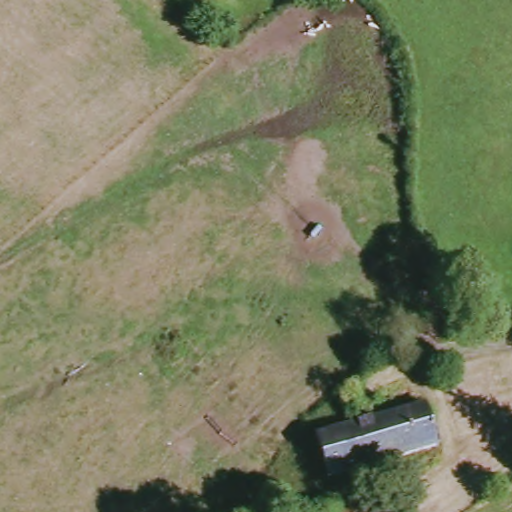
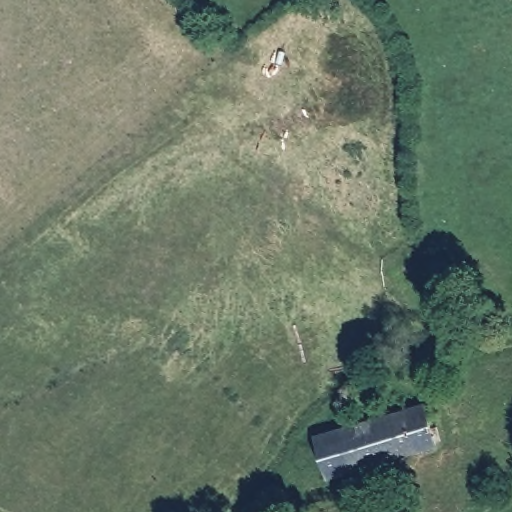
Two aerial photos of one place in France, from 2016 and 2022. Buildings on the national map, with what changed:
unchanged [(335,472),(323,431),(430,401),(443,442),(335,472)]
unchanged [(344,512),(331,512),(343,508),(344,512)]

